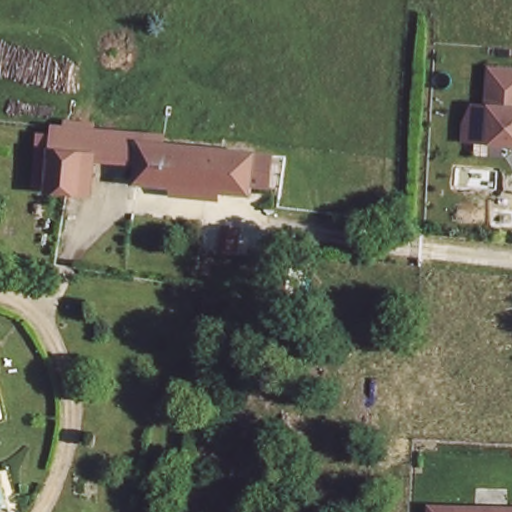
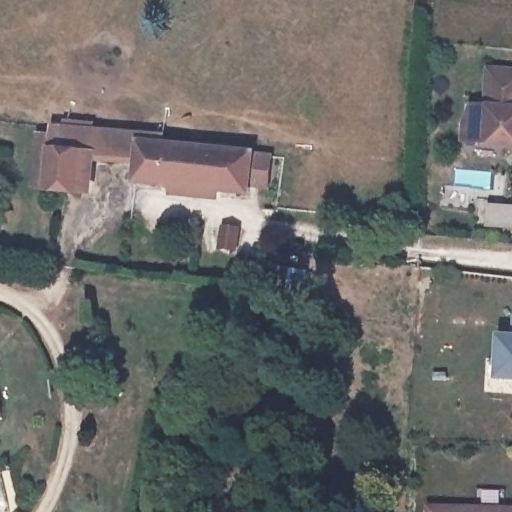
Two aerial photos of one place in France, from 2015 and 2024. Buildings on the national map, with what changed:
unchanged [(474,104),(485,104),(487,105),(490,67),(512,68),(512,140),(476,139),(466,138),(467,120),(474,104)]
unchanged [(53,126),(109,127),(109,139),(90,137),(91,190),(50,189),(53,126)]
unchanged [(142,180),(147,137),(161,137),(162,129),(190,130),(191,132),(191,145),(227,148),(257,151),(255,187),(142,180)]
new [(509,317),(512,318),(512,336),(507,336),(509,317)]
new [(493,336),(512,337),(512,377),(491,376),(493,336)]
unchanged [(512,508),(512,512),(427,512),(427,506),(512,508)]

